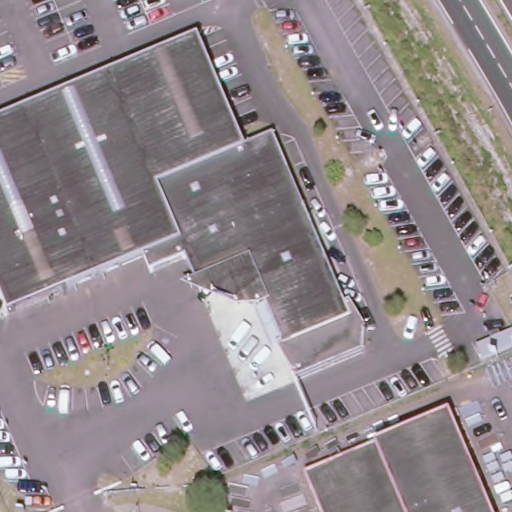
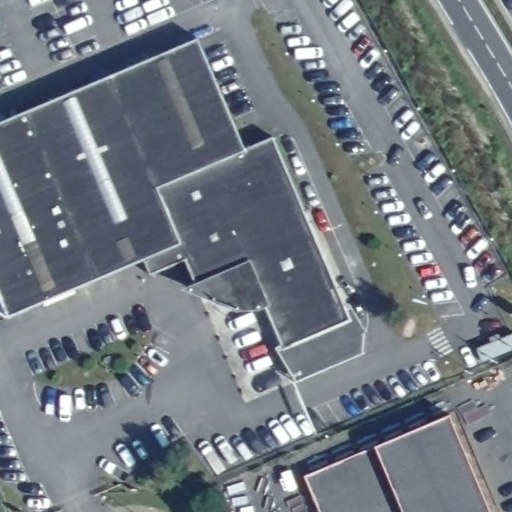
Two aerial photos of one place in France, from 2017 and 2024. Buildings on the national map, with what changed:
unchanged [(283,345),(281,340),(263,296),(250,301),(220,290),(213,275),(195,282),(186,260),(152,274),(145,258),(9,315),(0,295),(0,121),(199,37),(245,146),(274,135),(343,302),(349,317),(283,345)]
unchanged [(346,301),(365,332),(293,376),(274,345),(281,340),(283,345),(349,317),(343,302),(346,301)]
unchanged [(489,512),(319,512),(305,478),(450,417),(489,512)]

